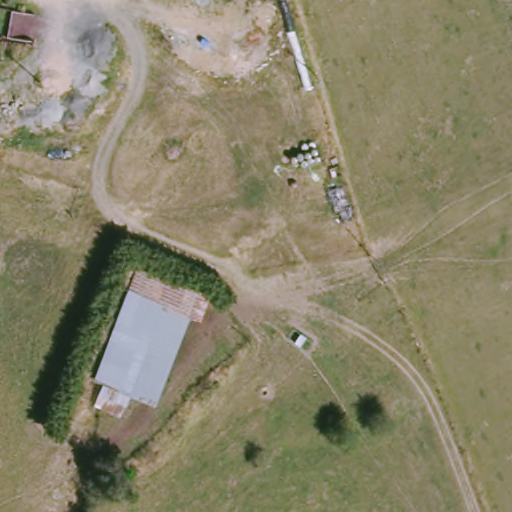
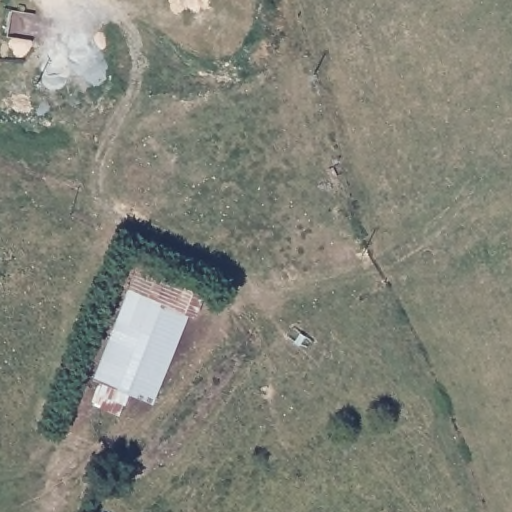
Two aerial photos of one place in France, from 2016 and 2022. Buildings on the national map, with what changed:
unchanged [(210,296),(200,324),(189,322),(154,404),(129,396),(123,415),(98,408),(104,385),(95,380),(140,267),(210,296)]

